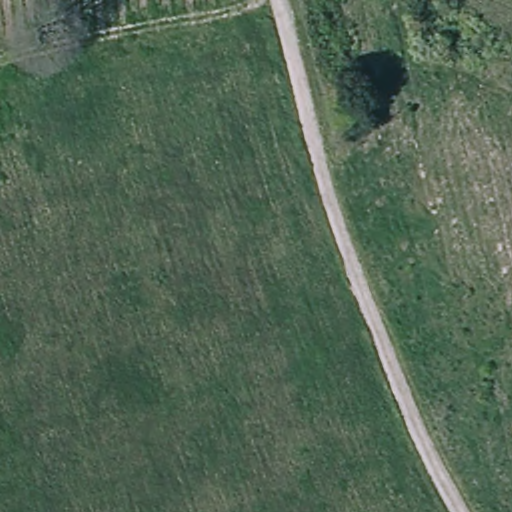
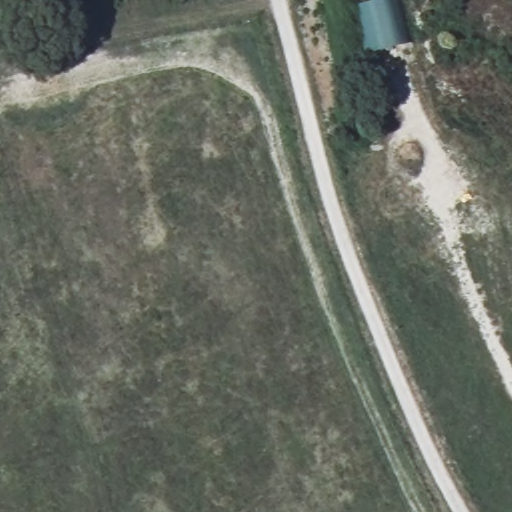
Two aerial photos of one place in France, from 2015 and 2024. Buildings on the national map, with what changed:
new [(401,0),(409,44),(372,53),(362,3),(372,0),(401,0)]

